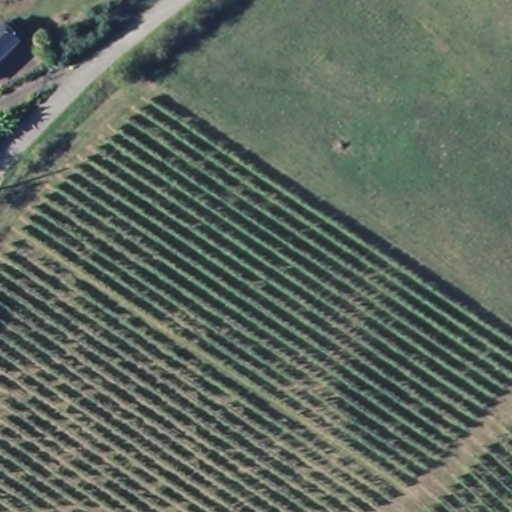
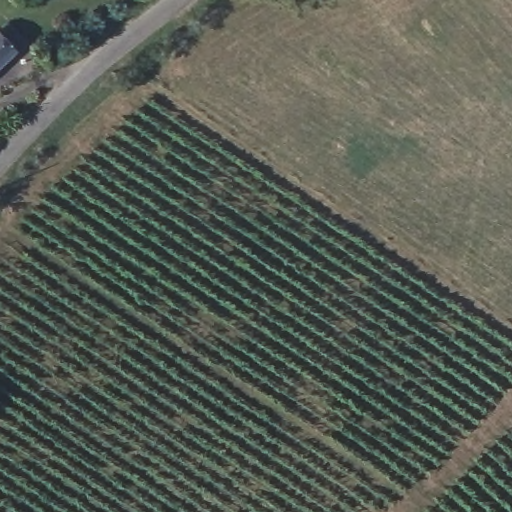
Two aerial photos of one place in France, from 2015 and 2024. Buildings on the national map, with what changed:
unchanged [(8,21),(25,40),(15,50),(0,64),(0,29),(8,21)]

